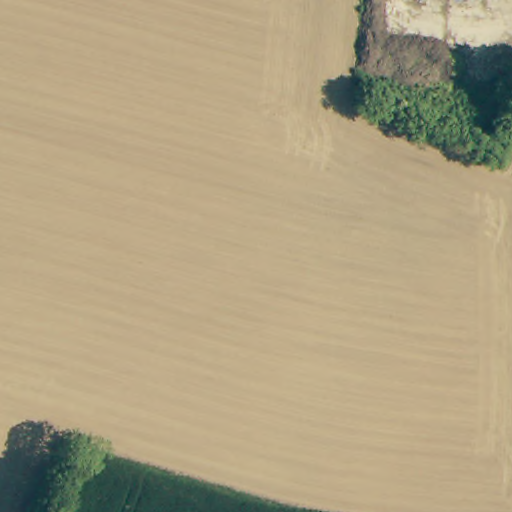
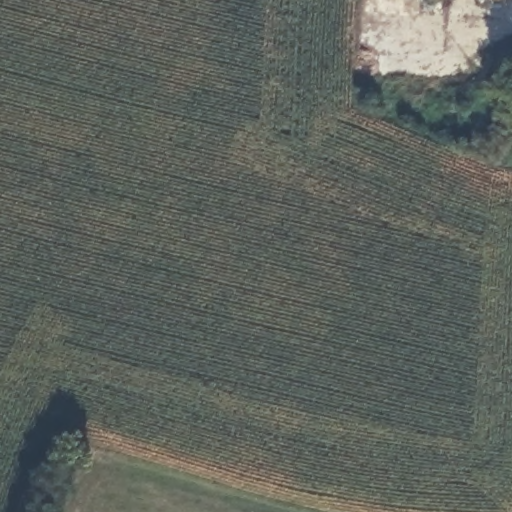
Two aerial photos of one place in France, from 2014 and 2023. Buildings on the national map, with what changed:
[]

